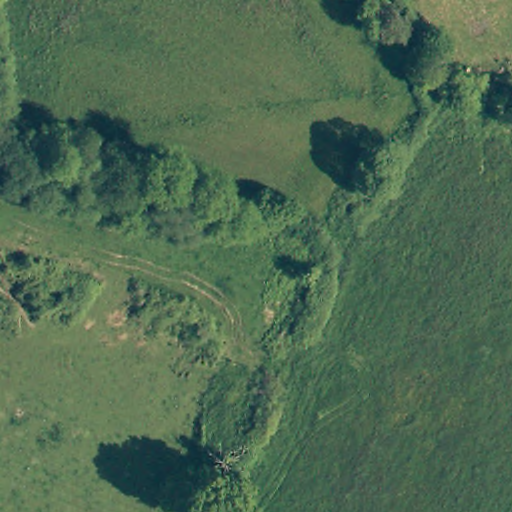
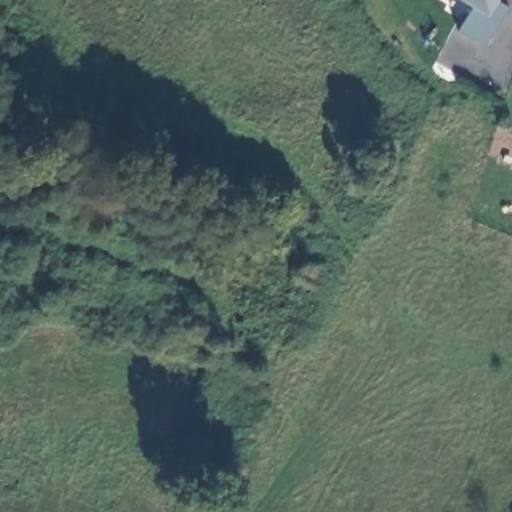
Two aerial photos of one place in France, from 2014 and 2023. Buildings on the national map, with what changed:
new [(472,6),(463,0),(499,0),(509,7),(485,46),(459,30),(472,6)]

